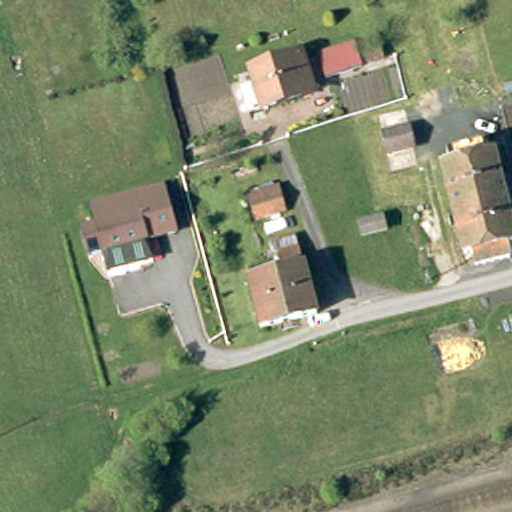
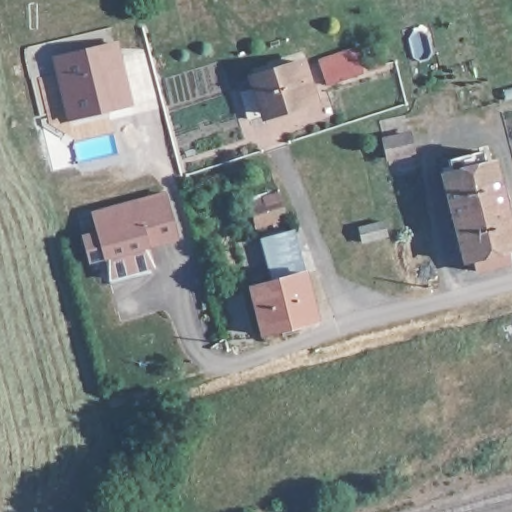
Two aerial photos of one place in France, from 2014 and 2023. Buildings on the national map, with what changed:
new [(135,107),(67,122),(51,54),(118,39),(135,107)]
unchanged [(363,67),(326,78),(321,58),(357,47),(363,67)]
unchanged [(381,49),(385,61),(370,66),(366,54),(381,49)]
unchanged [(238,78),(258,74),(255,65),(301,51),(313,92),(266,106),(248,112),(238,78)]
unchanged [(388,157),(383,139),(410,132),(414,150),(388,157)]
unchanged [(444,185),(453,182),(449,169),(483,162),(486,175),(495,173),(512,243),(512,273),(477,281),(474,270),(467,271),(444,185)]
unchanged [(256,228),(248,200),(280,189),(288,215),(256,228)]
unchanged [(151,246),(88,265),(81,240),(96,235),(91,216),(137,204),(140,203),(163,197),(164,203),(173,232),(175,238),(161,243),(151,246)]
unchanged [(358,251),(353,235),(356,234),(373,230),(380,229),(384,243),(378,245),(358,251)]
new [(304,276),(274,284),(261,238),(293,230),(304,276)]
unchanged [(304,276),(318,323),(264,338),(253,290),(304,276)]

